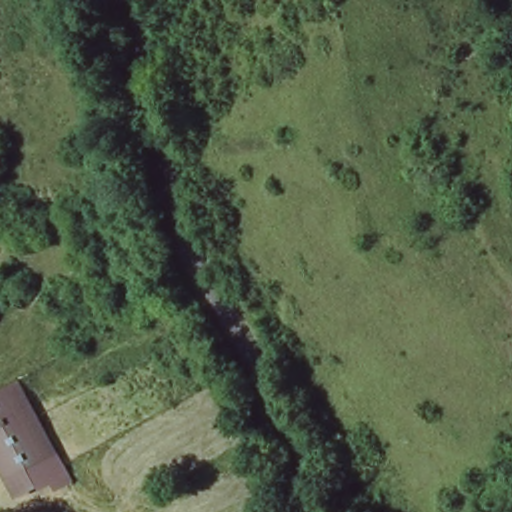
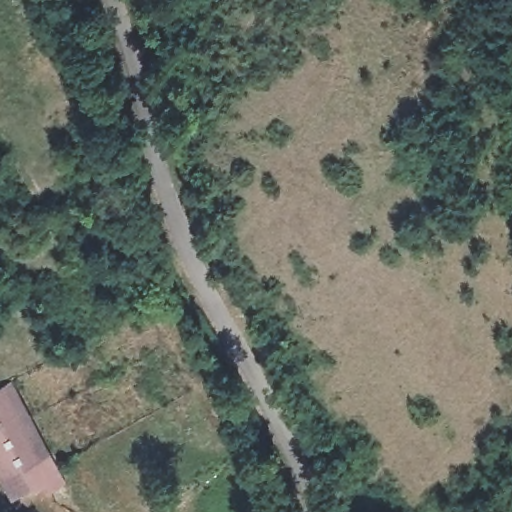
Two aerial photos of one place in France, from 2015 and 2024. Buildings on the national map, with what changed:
unchanged [(65,485),(52,497),(40,489),(10,500),(0,478),(0,387),(10,380),(65,485)]

